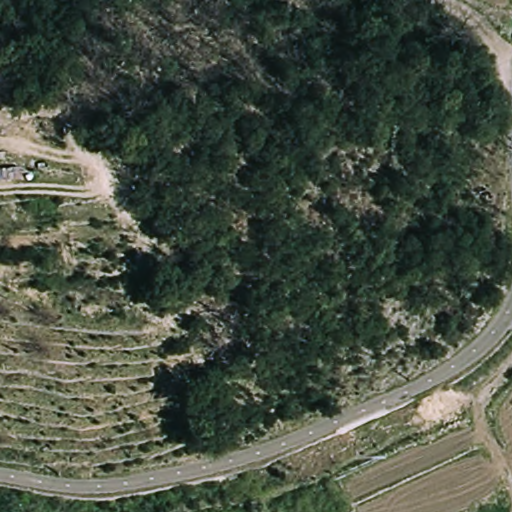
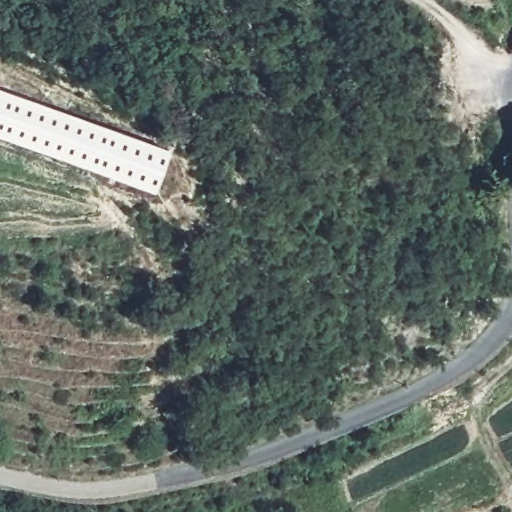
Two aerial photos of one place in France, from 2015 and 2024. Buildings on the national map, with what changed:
new [(154,188),(0,135),(0,85),(169,144),(154,188)]
demolished [(376,492),(386,509),(380,512),(357,512),(353,504),(376,492)]

